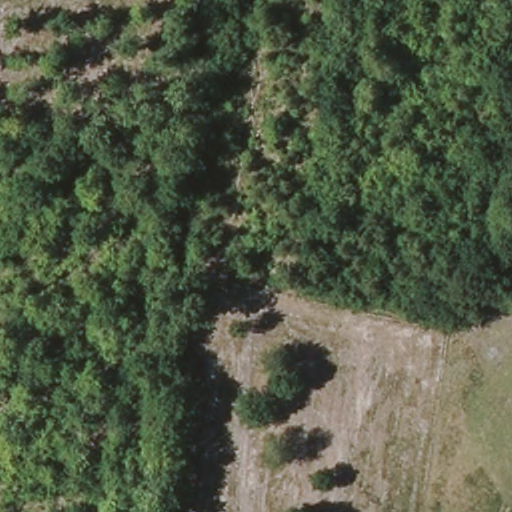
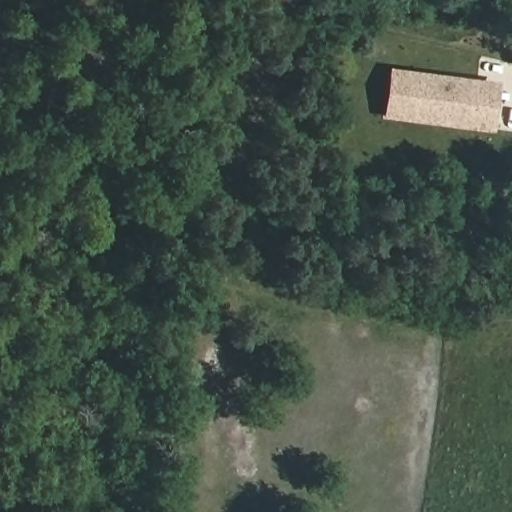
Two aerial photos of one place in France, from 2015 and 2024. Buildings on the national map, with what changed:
new [(493,132),(382,119),(387,67),(500,82),(493,132)]

